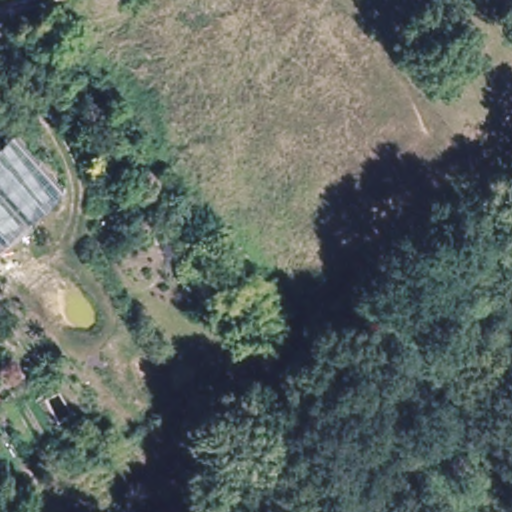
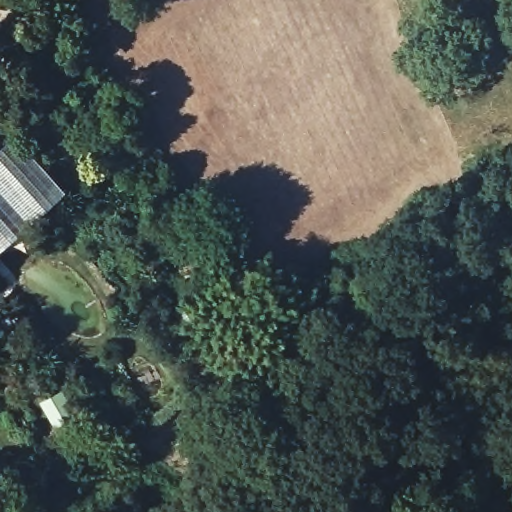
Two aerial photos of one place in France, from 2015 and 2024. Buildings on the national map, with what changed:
unchanged [(29,356),(11,368),(0,353),(0,337),(12,327),(29,356)]
unchanged [(77,415),(53,433),(34,407),(56,386),(77,415)]

